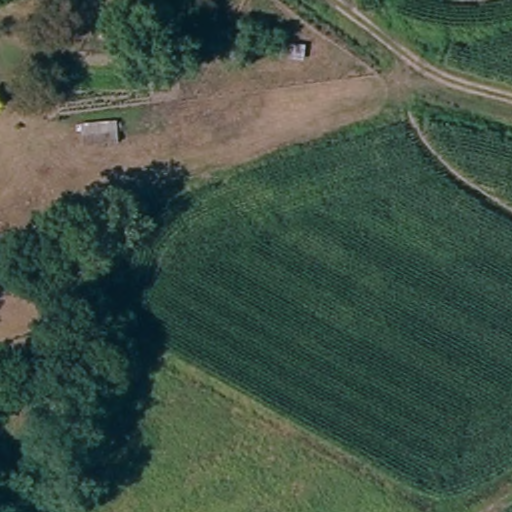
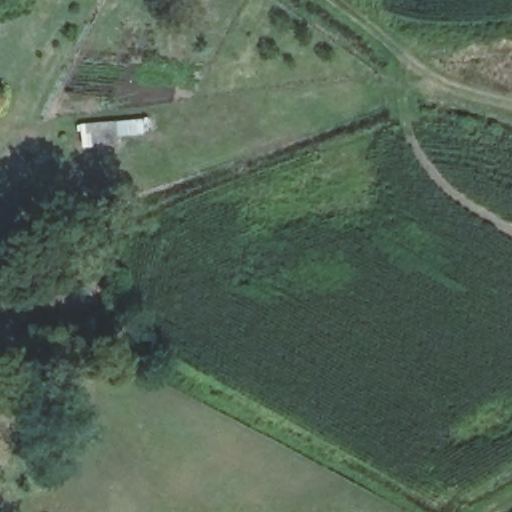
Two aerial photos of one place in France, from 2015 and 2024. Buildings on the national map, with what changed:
unchanged [(29,382),(59,392),(49,429),(19,420),(29,382)]

